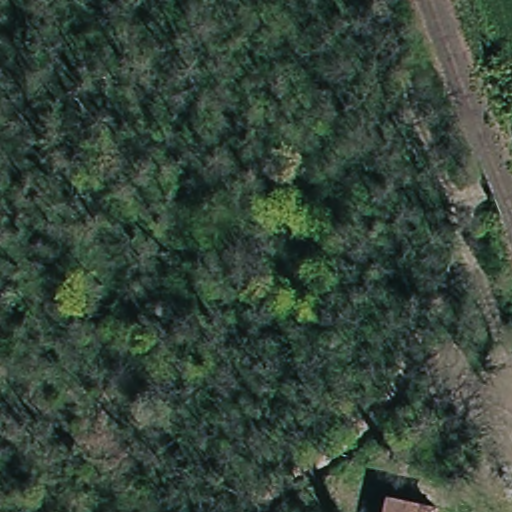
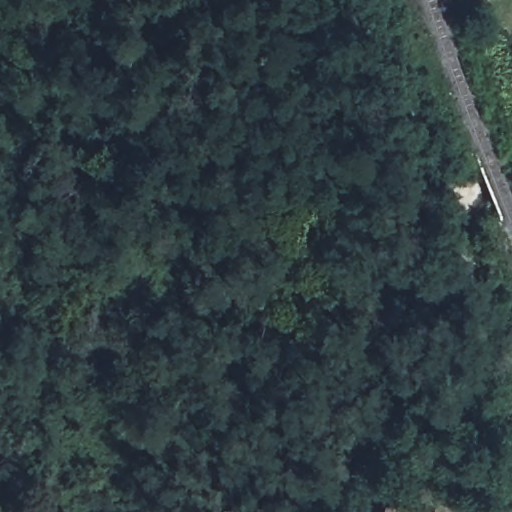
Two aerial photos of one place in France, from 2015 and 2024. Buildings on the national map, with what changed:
unchanged [(387,497),(438,512),(383,512),(387,497)]

